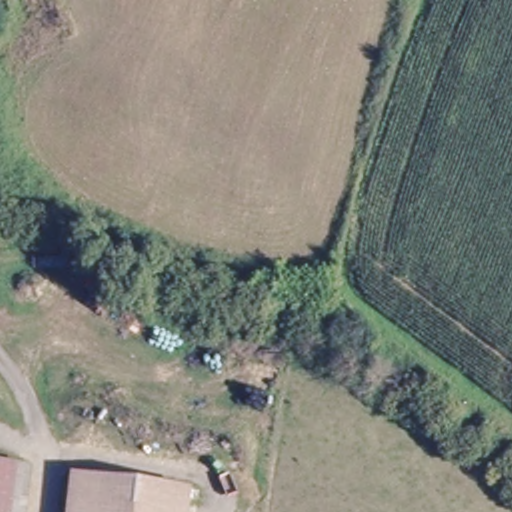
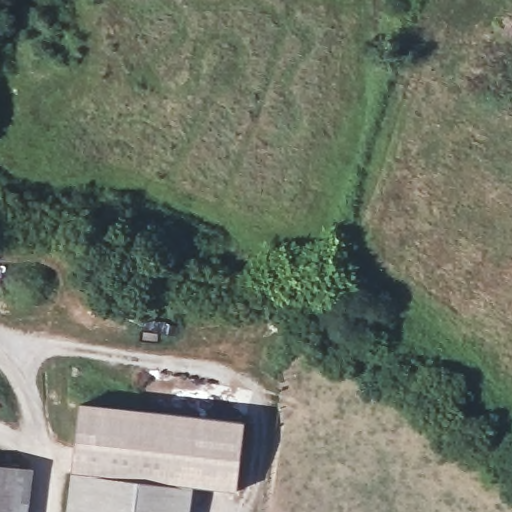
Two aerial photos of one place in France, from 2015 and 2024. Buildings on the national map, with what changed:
new [(244,421),(236,490),(70,471),(79,402),(244,421)]
unchanged [(14,512),(0,512),(0,464),(5,465),(18,466),(14,512)]
unchanged [(172,486),(170,512),(70,512),(73,477),(172,486)]
unchanged [(193,487),(191,512),(170,512),(172,486),(193,487)]

